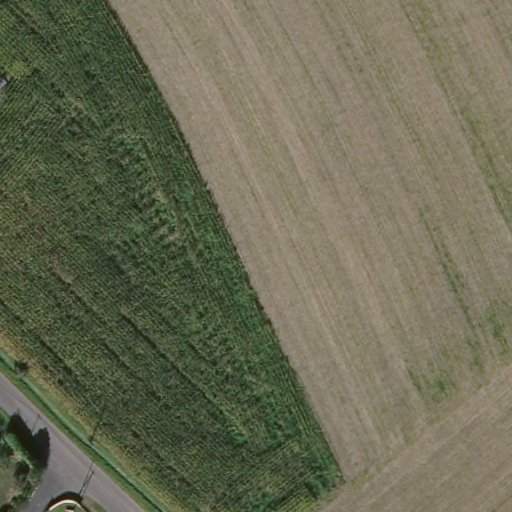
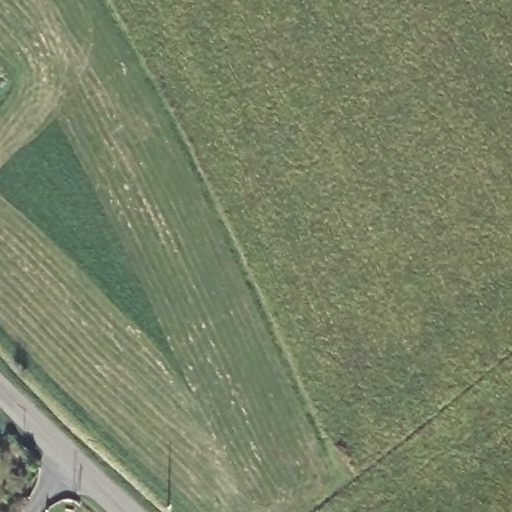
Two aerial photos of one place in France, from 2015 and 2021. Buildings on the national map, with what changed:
[]

